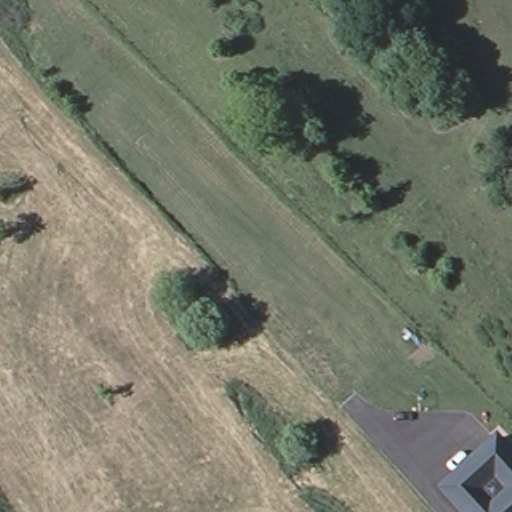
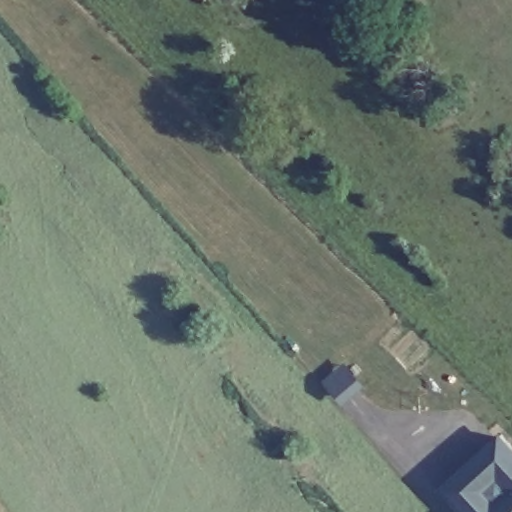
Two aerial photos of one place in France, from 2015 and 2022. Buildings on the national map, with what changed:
unchanged [(512,443),(512,512),(473,512),(447,483),(502,432),(512,443)]

